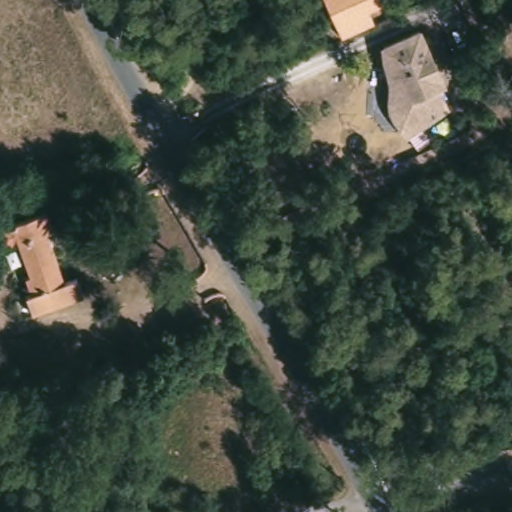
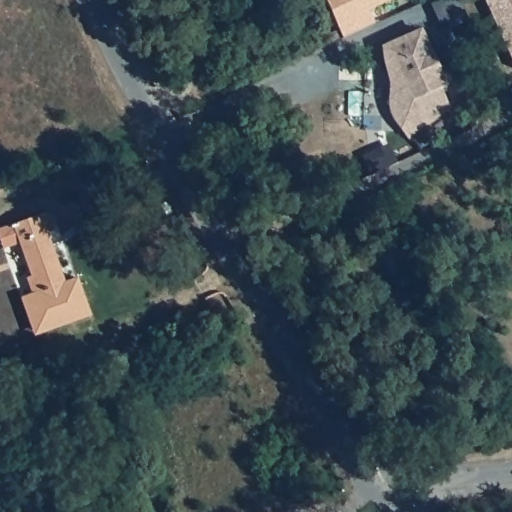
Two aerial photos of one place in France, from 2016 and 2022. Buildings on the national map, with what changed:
unchanged [(326,0),(391,0),(370,10),(376,22),(342,36),(326,0)]
new [(483,0),(512,0),(512,60),(483,0)]
unchanged [(400,122),(395,115),(393,111),(391,101),(392,82),(386,55),(386,45),(422,29),(442,75),(445,82),(440,85),(448,104),(408,132),(401,124),(400,122)]
unchanged [(44,235),(61,288),(77,283),(82,304),(33,318),(25,302),(29,300),(22,282),(29,280),(20,250),(1,254),(0,250),(0,231),(46,219),(50,234),(44,235)]
unchanged [(6,493),(0,495),(0,478),(4,477),(6,493)]

